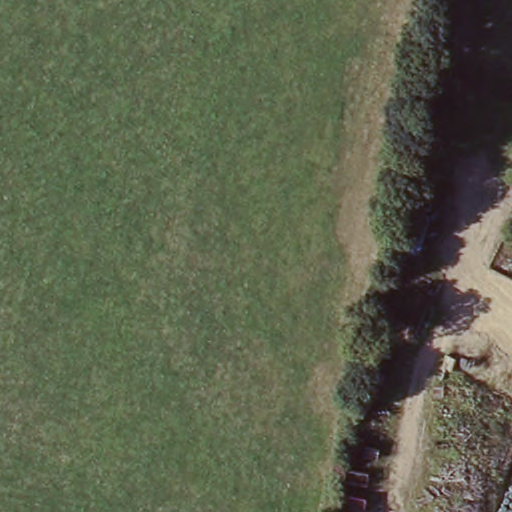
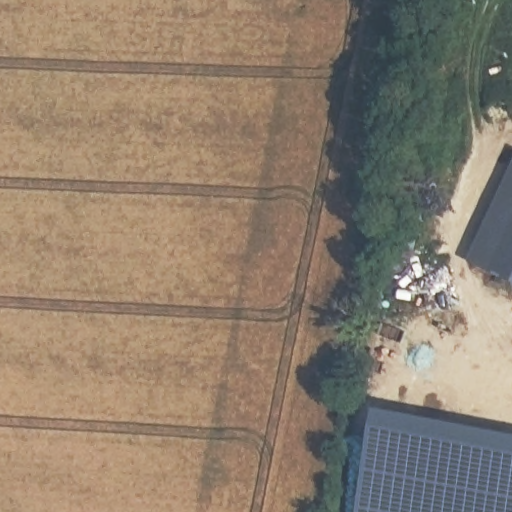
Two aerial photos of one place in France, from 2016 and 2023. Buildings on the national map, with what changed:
unchanged [(512,283),(490,273),(512,228),(512,283)]
new [(512,433),(512,512),(360,512),(380,407),(512,433)]

